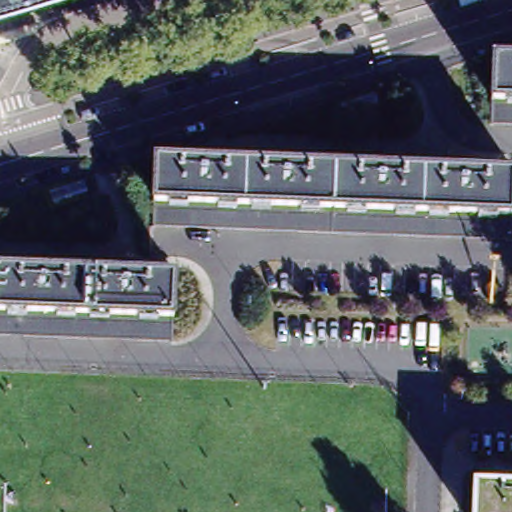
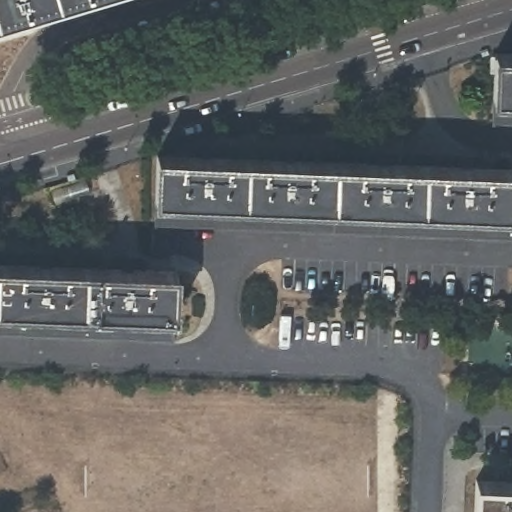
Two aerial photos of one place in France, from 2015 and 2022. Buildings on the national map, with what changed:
unchanged [(0,23),(0,0),(77,0),(0,23)]
unchanged [(512,101),(497,101),(499,56),(512,56),(512,101)]
unchanged [(512,122),(496,122),(497,101),(512,101),(512,122)]
unchanged [(510,172),(510,219),(155,202),(157,160),(510,172)]
unchanged [(510,219),(509,238),(154,226),(155,202),(510,219)]
unchanged [(174,273),(171,316),(0,309),(0,267),(174,273)]
unchanged [(171,316),(170,339),(0,333),(0,309),(171,316)]
unchanged [(512,512),(473,512),(475,482),(512,483),(512,512)]

